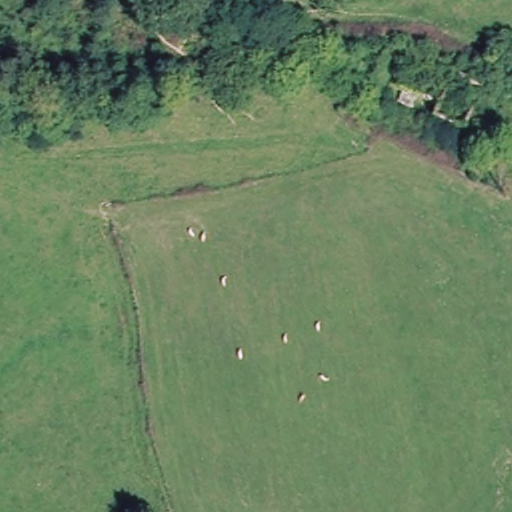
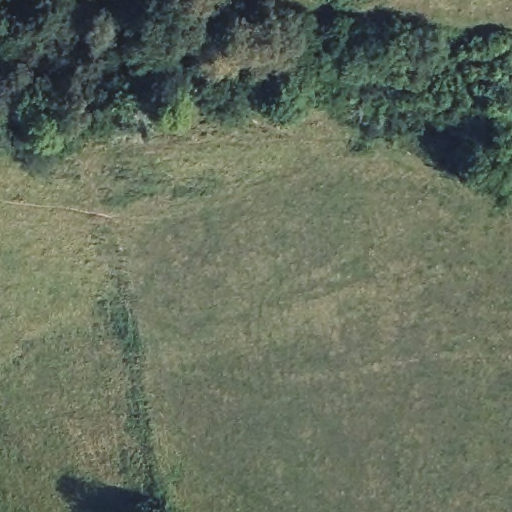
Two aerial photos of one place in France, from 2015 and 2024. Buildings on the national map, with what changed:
unchanged [(438,101),(432,117),(395,101),(400,85),(438,101)]

